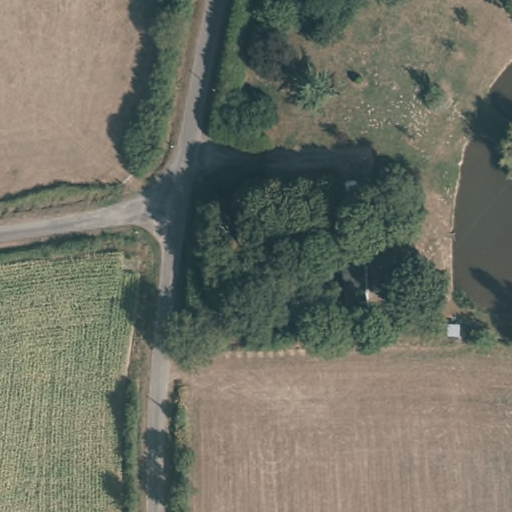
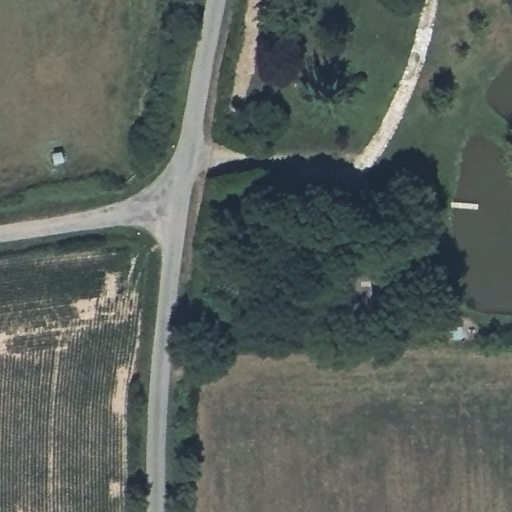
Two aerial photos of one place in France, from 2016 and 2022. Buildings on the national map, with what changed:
unchanged [(350,305),(345,243),(371,241),(374,301),(350,305)]

